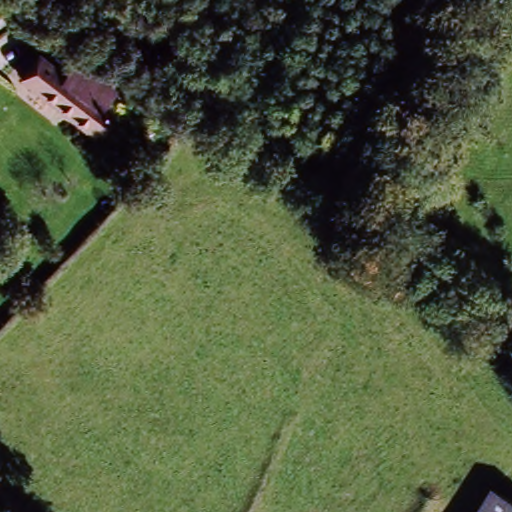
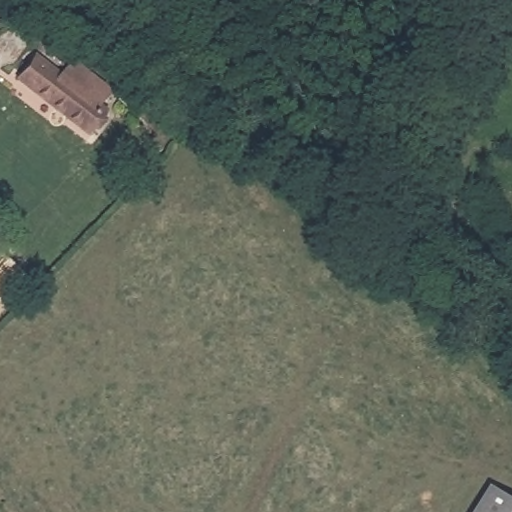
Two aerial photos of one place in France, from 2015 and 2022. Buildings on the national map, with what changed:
unchanged [(24,81),(38,60),(114,111),(100,132),(24,81)]
unchanged [(512,504),(512,512),(494,512),(503,498),(512,504)]

